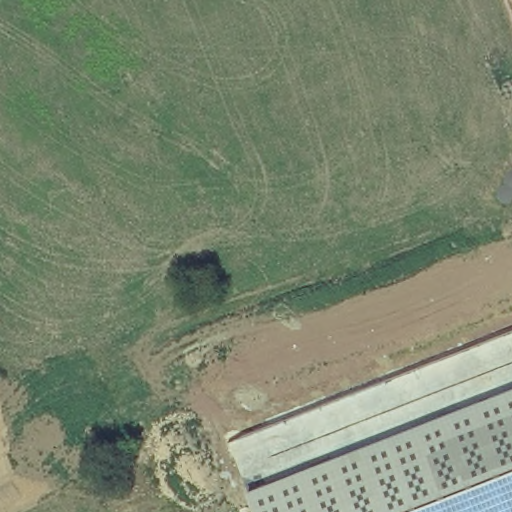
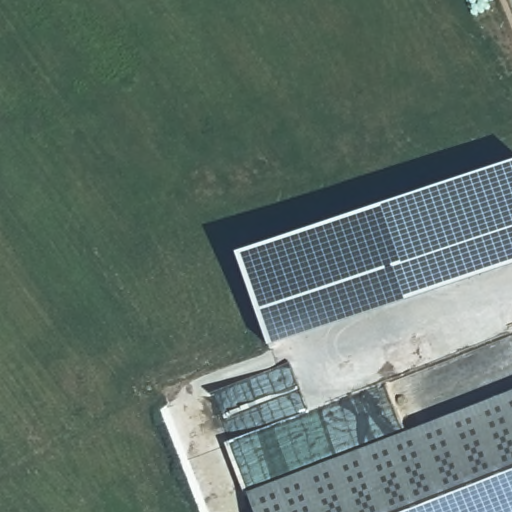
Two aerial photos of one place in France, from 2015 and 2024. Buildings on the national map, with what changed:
new [(512,159),(512,263),(265,346),(232,251),(512,159)]
unchanged [(252,496),(512,394),(512,512),(258,512),(252,496)]

